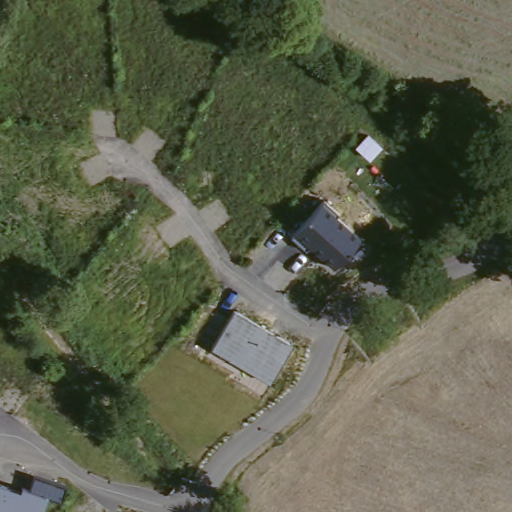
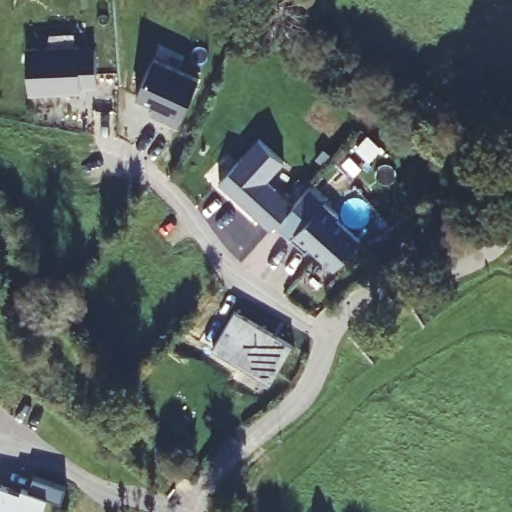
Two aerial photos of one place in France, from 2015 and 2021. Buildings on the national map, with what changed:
new [(97,86),(81,86),(81,91),(29,94),(27,48),(78,44),(78,48),(95,47),(97,86)]
new [(150,113),(155,104),(137,96),(155,55),(199,76),(177,125),(150,113)]
new [(292,235),(276,222),(271,229),(221,182),(259,138),(284,160),(268,180),(295,203),(313,184),(326,195),(325,197),(292,235)]
unchanged [(341,212),(337,215),(362,235),(335,267),(309,246),(307,248),(292,235),(325,197),(341,212)]
unchanged [(231,312),(289,344),(270,380),(210,348),(231,312)]
unchanged [(22,486),(30,488),(35,474),(66,482),(62,499),(47,496),(42,512),(0,512),(0,483),(20,489),(22,486)]

